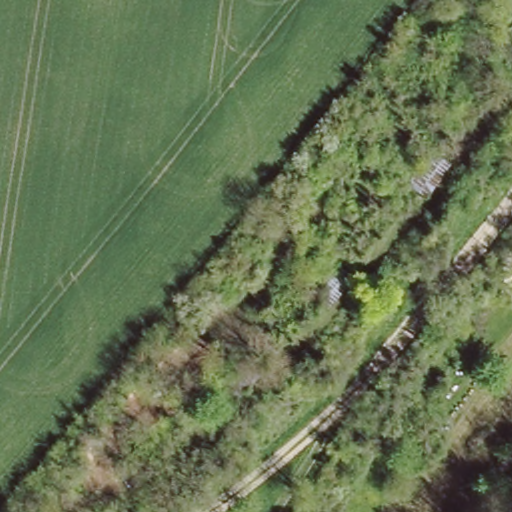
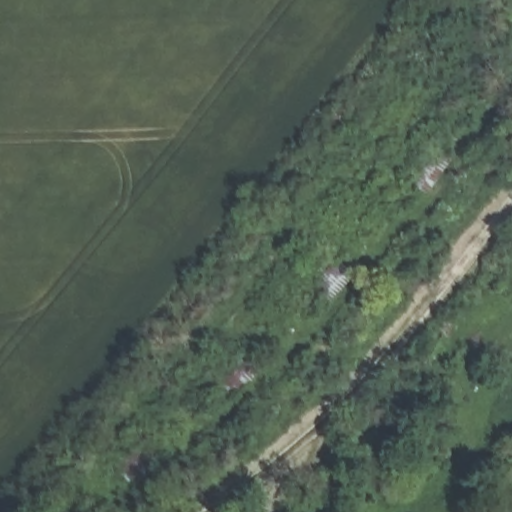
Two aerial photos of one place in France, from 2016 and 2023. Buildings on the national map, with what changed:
unchanged [(429,145),(448,163),(421,191),(402,174),(429,145)]
unchanged [(337,257),(354,274),(326,303),(309,288),(337,257)]
unchanged [(244,346),(262,362),(234,394),(217,379),(244,346)]
unchanged [(139,437),(155,457),(120,485),(104,465),(139,437)]

